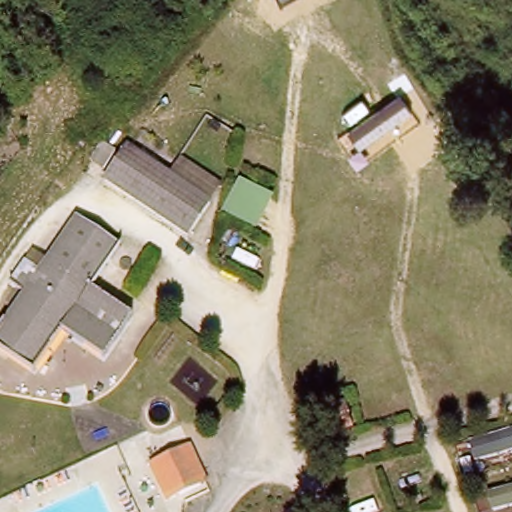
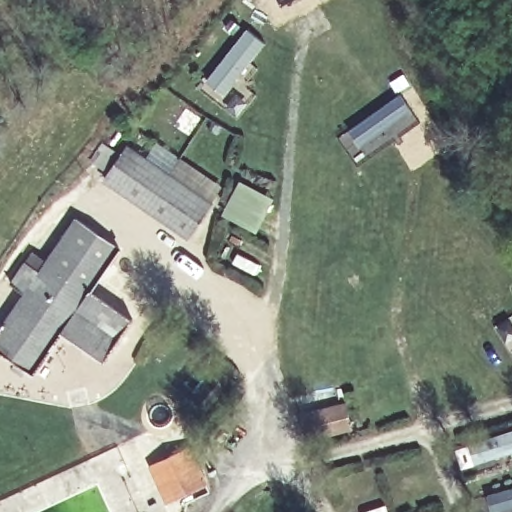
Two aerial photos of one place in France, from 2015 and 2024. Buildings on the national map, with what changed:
new [(208,80),(248,29),(266,44),(226,94),(208,80)]
unchanged [(412,113),(361,150),(347,130),(399,94),(412,113)]
unchanged [(99,174),(86,166),(96,149),(109,156),(99,174)]
unchanged [(130,156),(207,206),(185,240),(103,189),(100,187),(122,151),(130,156)]
unchanged [(253,230),(221,216),(235,184),(268,199),(253,230)]
unchanged [(51,351),(35,378),(1,356),(0,356),(0,333),(23,298),(8,288),(19,269),(35,279),(45,264),(43,263),(57,242),(62,244),(75,224),(118,251),(91,293),(133,320),(104,362),(62,334),(51,351)]
unchanged [(355,426),(307,438),(300,409),(347,398),(355,426)]
unchanged [(149,467),(155,464),(186,449),(204,486),(174,501),(167,504),(149,467)]

